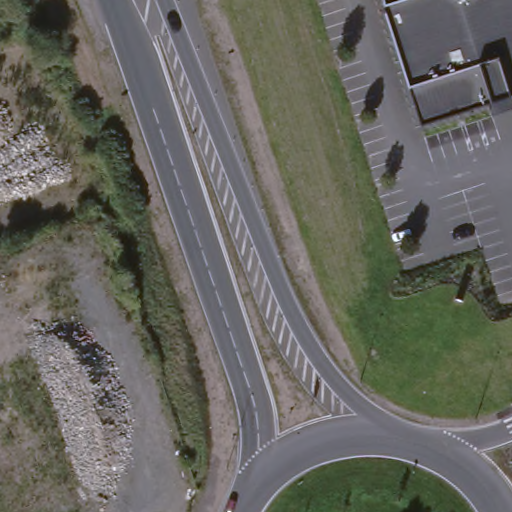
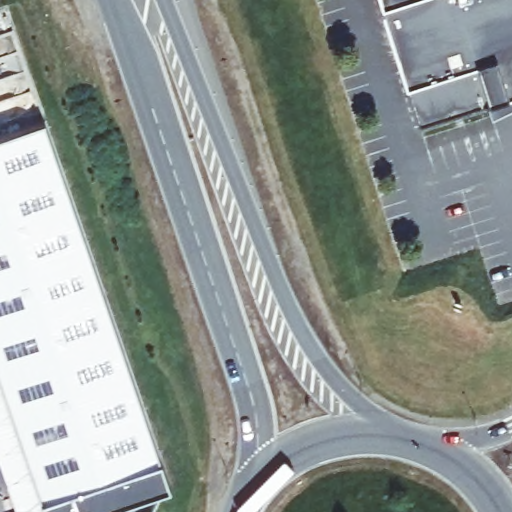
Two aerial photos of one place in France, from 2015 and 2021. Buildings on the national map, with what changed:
unchanged [(386,0),(512,0),(512,91),(509,85),(493,91),(498,103),(427,128),(384,7),(388,6),(386,0)]
new [(170,488),(103,512),(17,512),(0,463),(0,131),(43,116),(170,488)]

